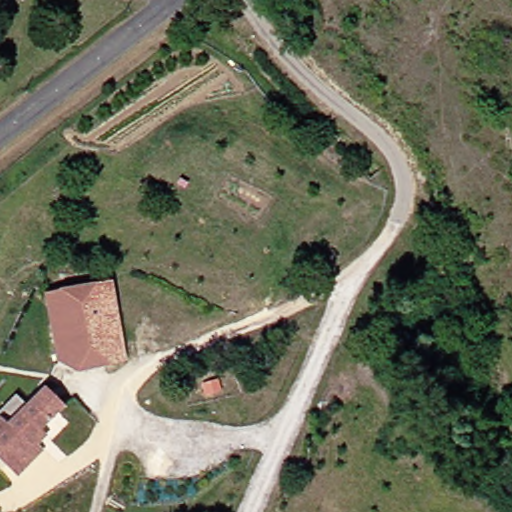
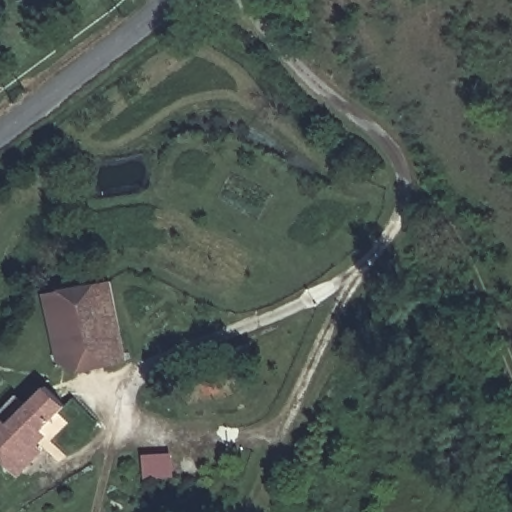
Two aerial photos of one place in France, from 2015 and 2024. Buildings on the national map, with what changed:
unchanged [(54,357),(47,297),(109,287),(117,348),(54,357)]
unchanged [(119,366),(56,373),(54,357),(117,348),(119,366)]
unchanged [(12,474),(2,463),(0,461),(0,418),(4,423),(44,388),(63,409),(28,440),(38,452),(12,474)]

